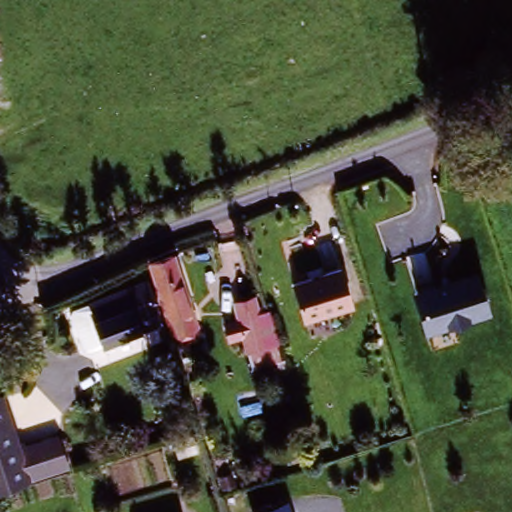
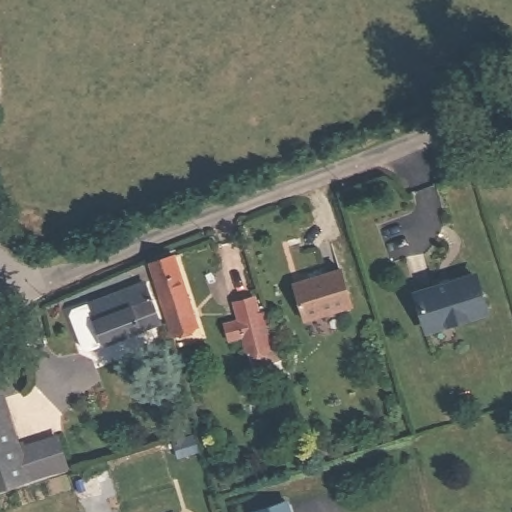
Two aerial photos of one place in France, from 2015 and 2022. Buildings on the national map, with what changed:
unchanged [(175,259),(200,328),(177,335),(153,268),(175,259)]
unchanged [(304,324),(293,284),(343,270),(354,310),(304,324)]
unchanged [(413,290),(479,273),(492,316),(426,336),(413,290)]
unchanged [(102,348),(93,321),(86,306),(143,284),(146,293),(159,328),(102,348)]
unchanged [(263,315),(269,312),(279,349),(274,352),(278,371),(252,378),(244,341),(227,344),(223,329),(236,324),(233,305),(257,298),(263,315)]
unchanged [(5,403),(20,451),(57,442),(64,471),(1,488),(0,488),(0,404),(5,403)]
unchanged [(292,512),(257,512),(289,502),(292,512)]

